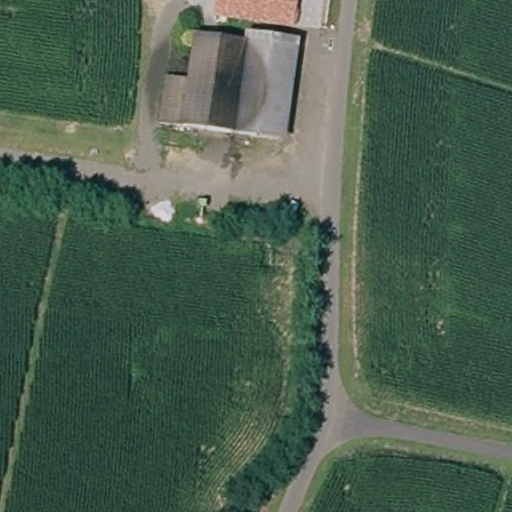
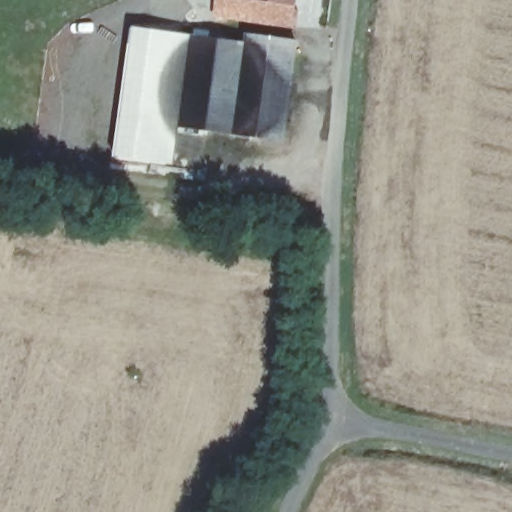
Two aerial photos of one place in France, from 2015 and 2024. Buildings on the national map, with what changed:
unchanged [(294,27),(268,24),(222,17),(225,1),(269,7),(296,10),(294,27)]
new [(199,36),(198,40),(192,80),(187,129),(183,128),(179,165),(117,159),(131,30),(199,36)]
unchanged [(286,142),(260,138),(256,138),(187,129),(192,80),(198,40),(247,46),(248,37),(266,40),(272,40),(271,49),(297,52),(286,142)]
demolished [(187,129),(175,127),(162,126),(167,76),(177,78),(192,80),(187,129)]

